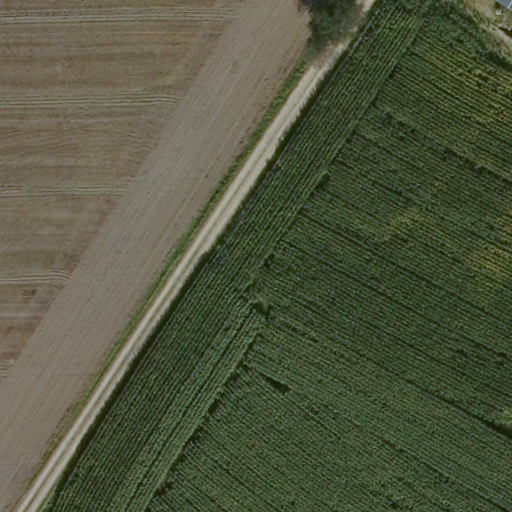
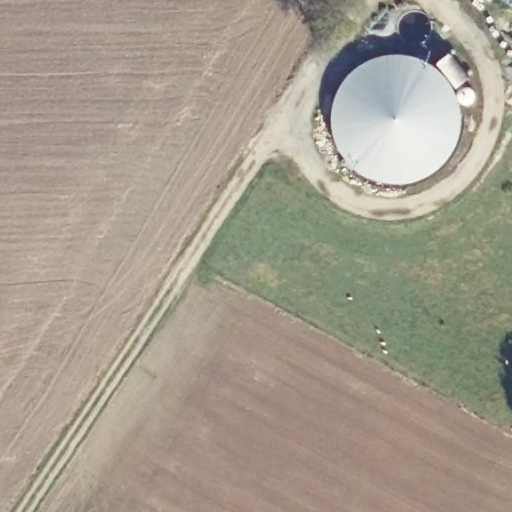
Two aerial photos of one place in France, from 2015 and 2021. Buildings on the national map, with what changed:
unchanged [(512,0),(512,4),(505,0),(512,0)]
new [(337,108),(339,99),(344,91),(348,84),(354,76),(364,68),(376,61),(384,59),(394,57),(412,58),(433,65),(447,76),(457,90),(464,108),(464,116),(464,130),(463,139),(458,151),(453,159),(444,169),(433,177),(424,181),(412,184),(398,185),(385,184),(368,177),(357,169),(351,163),(344,151),(340,143),(337,130),(336,121),(337,108)]

